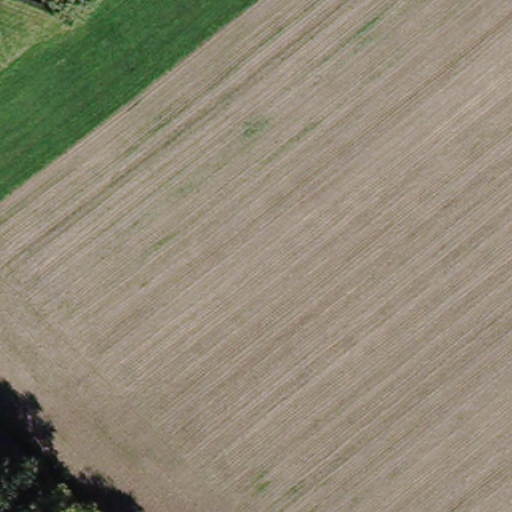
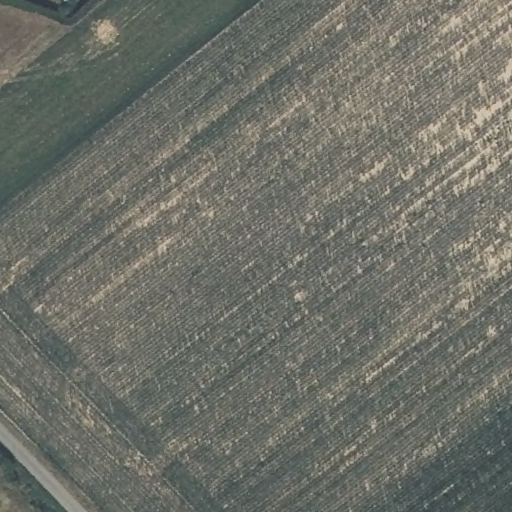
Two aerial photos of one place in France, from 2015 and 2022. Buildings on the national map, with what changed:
[]

